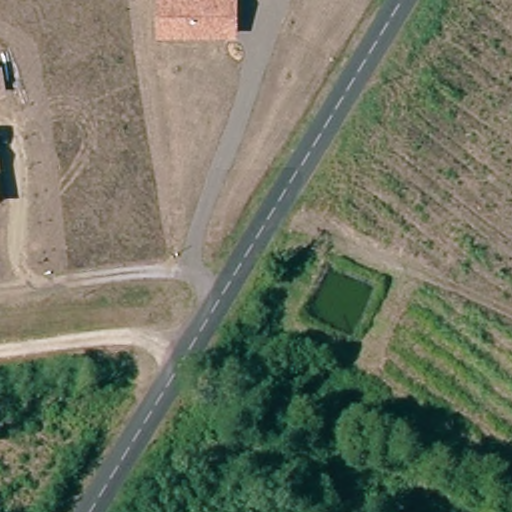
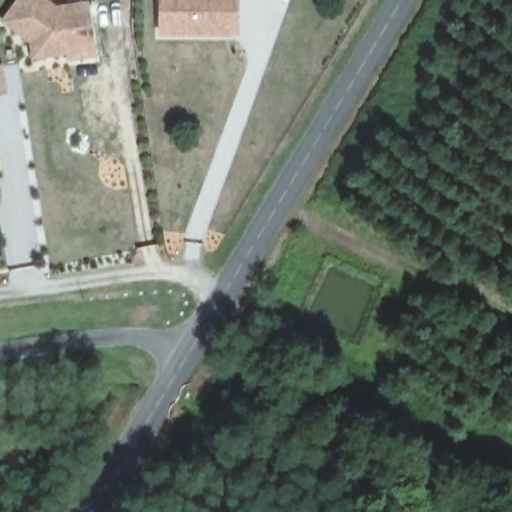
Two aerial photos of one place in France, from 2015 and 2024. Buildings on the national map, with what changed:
new [(95,54),(67,59),(63,54),(31,57),(29,39),(0,20),(15,0),(48,0),(54,4),(87,2),(95,54)]
unchanged [(237,37),(159,37),(158,0),(238,0),(237,37)]
unchanged [(7,95),(0,97),(0,66),(2,65),(7,95)]

